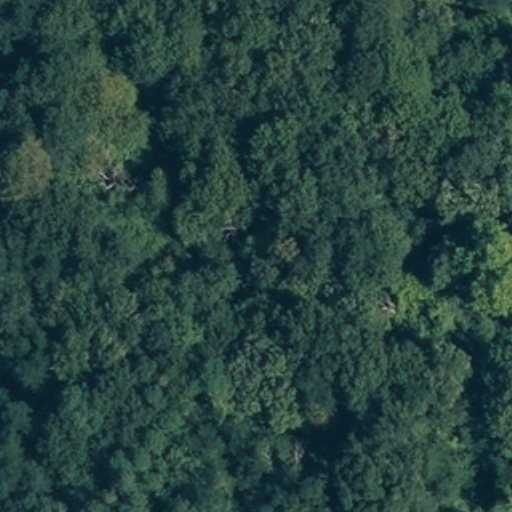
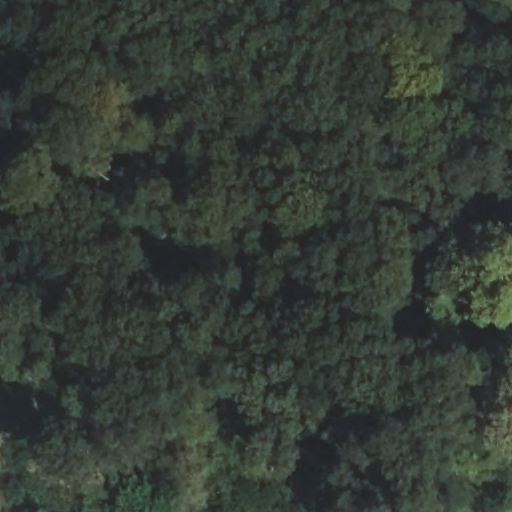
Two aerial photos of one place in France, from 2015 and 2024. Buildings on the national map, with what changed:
[]

